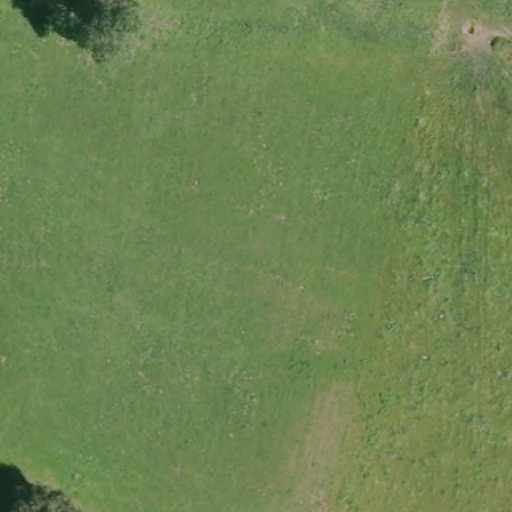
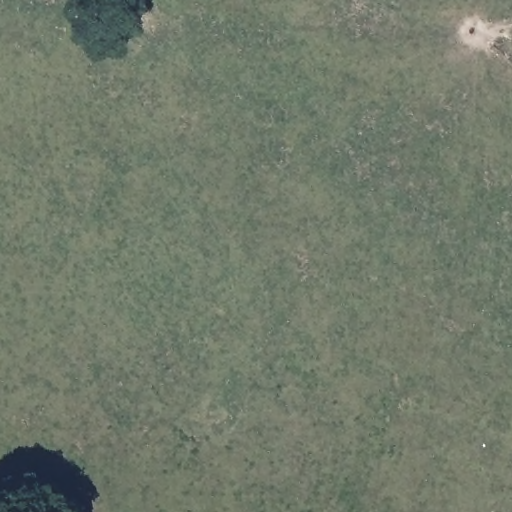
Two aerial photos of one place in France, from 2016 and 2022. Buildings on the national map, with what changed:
[]

